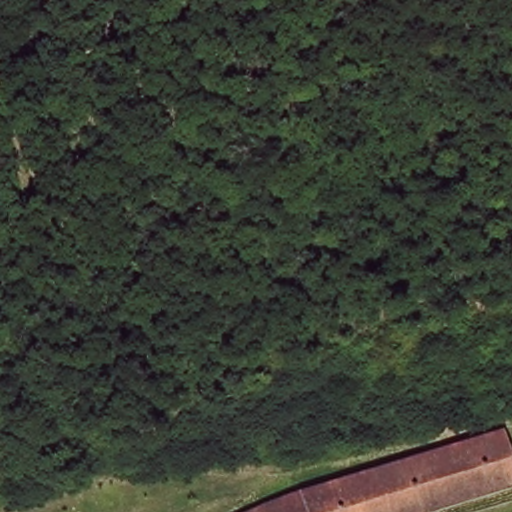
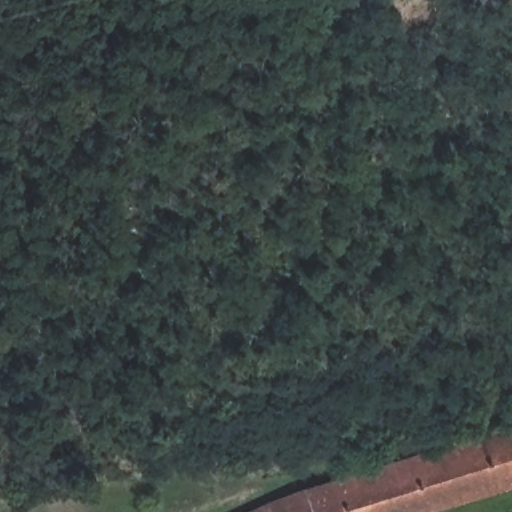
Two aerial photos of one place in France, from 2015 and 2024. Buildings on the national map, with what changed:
unchanged [(504,426),(512,451),(512,481),(414,512),(246,512),(275,499),(504,426)]

